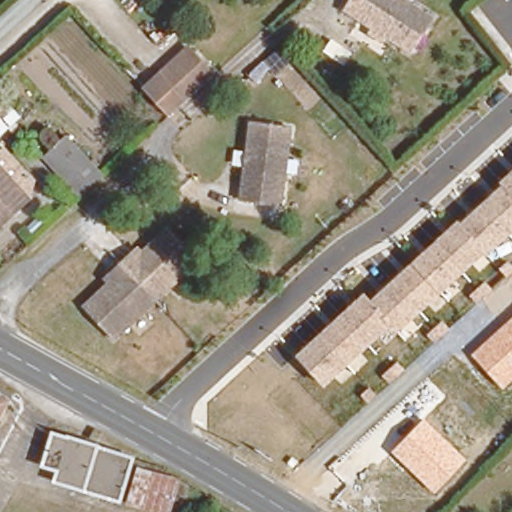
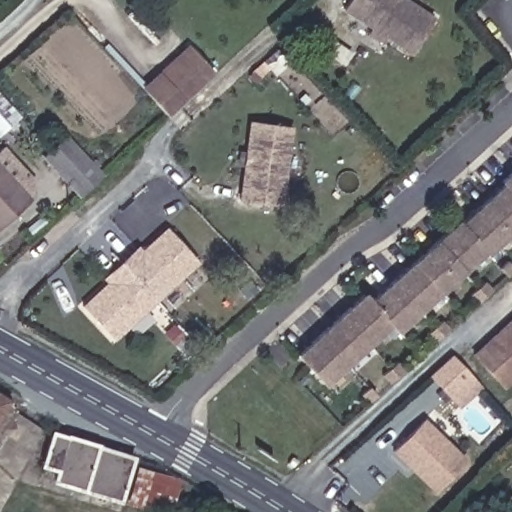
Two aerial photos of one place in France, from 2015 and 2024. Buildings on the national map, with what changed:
unchanged [(412,56),(345,16),(354,0),(399,0),(431,18),(412,56)]
unchanged [(171,115),(143,86),(190,42),(217,71),(174,112),(171,115)]
unchanged [(281,205),(240,201),(249,119),(291,123),(281,205)]
unchanged [(41,156),(63,134),(103,174),(80,196),(41,156)]
unchanged [(0,231),(0,167),(33,202),(1,232),(0,231)]
unchanged [(363,293),(370,299),(459,219),(463,222),(504,184),(500,181),(512,170),(512,233),(488,256),(483,253),(397,333),(389,326),(326,386),(297,354),(363,293)]
unchanged [(117,344),(88,314),(118,286),(105,273),(129,250),(141,262),(169,235),(199,267),(117,344)]
unchanged [(503,390),(472,355),(512,319),(512,381),(503,390)]
new [(459,409),(428,376),(453,354),(483,388),(459,409)]
unchanged [(0,412),(0,396),(8,401),(0,412)]
unchanged [(435,492),(393,451),(424,419),(465,458),(435,492)]
unchanged [(130,454),(129,469),(175,483),(165,509),(51,482),(53,471),(35,465),(50,433),(130,454)]

